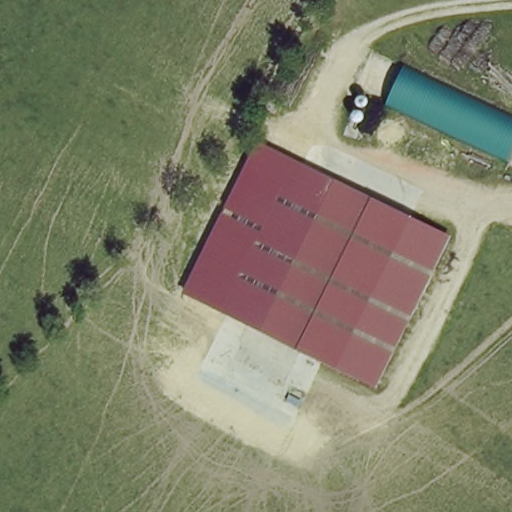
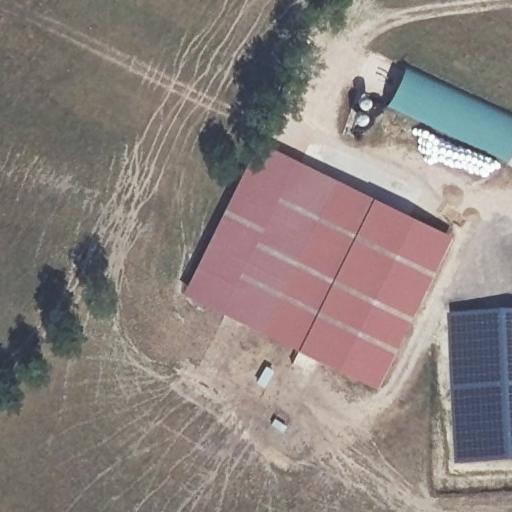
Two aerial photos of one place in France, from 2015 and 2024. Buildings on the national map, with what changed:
unchanged [(382,104),(397,64),(512,115),(512,136),(502,161),(382,104)]
unchanged [(376,387),(182,293),(257,141),(450,236),(376,387)]
new [(459,467),(452,315),(512,313),(512,464),(459,467)]

